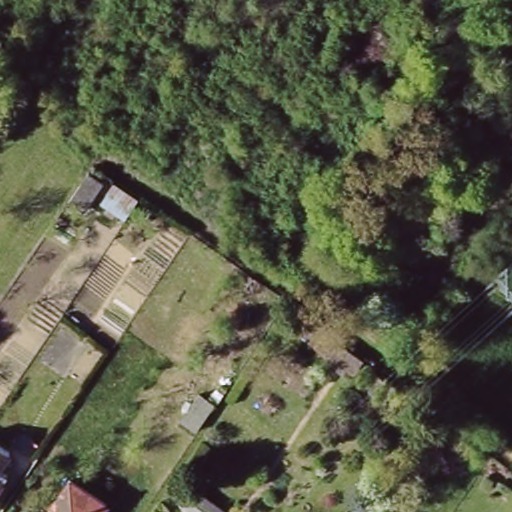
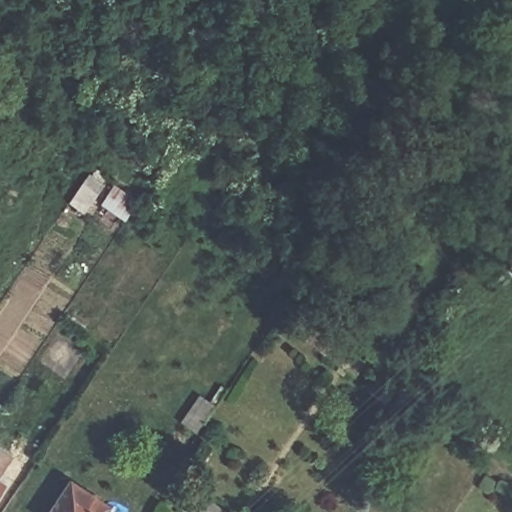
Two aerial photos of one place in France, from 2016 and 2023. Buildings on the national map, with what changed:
unchanged [(89,169),(101,176),(82,204),(70,197),(89,169)]
unchanged [(16,449),(6,464),(14,469),(0,490),(0,438),(16,449)]
unchanged [(106,498),(96,512),(46,512),(45,511),(70,474),(106,498)]

